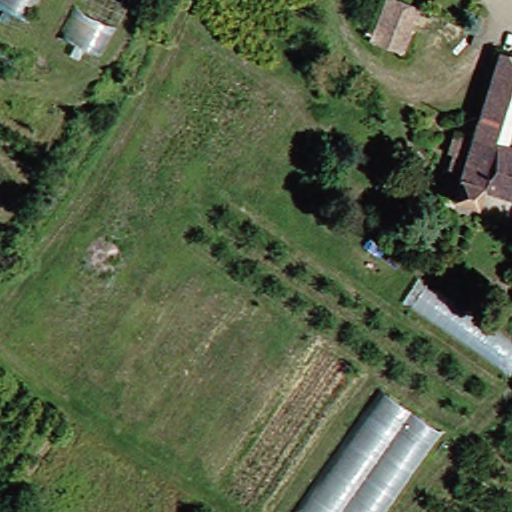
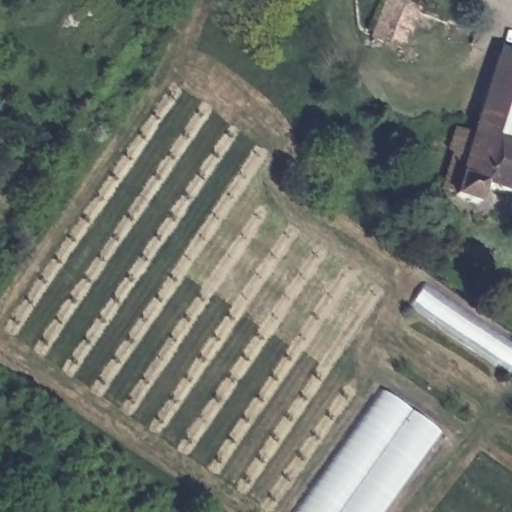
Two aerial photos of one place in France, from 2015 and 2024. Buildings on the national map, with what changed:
unchanged [(12,27),(0,22),(0,0),(27,0),(18,17),(12,27)]
unchanged [(84,62),(47,45),(67,0),(115,0),(84,62)]
unchanged [(388,47),(360,35),(376,0),(383,0),(406,9),(388,47)]
unchanged [(488,52),(512,60),(512,200),(472,187),(466,204),(442,197),(443,193),(429,189),(441,153),(436,152),(444,130),(462,135),(488,52)]
unchanged [(394,301),(409,279),(511,353),(496,373),(394,301)]
unchanged [(283,512),(374,392),(434,435),(373,512),(283,512)]

